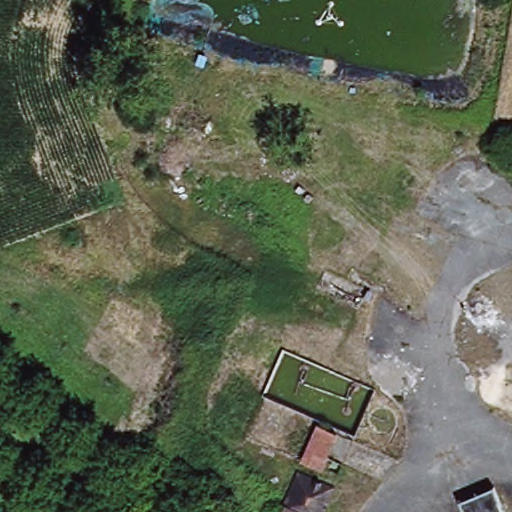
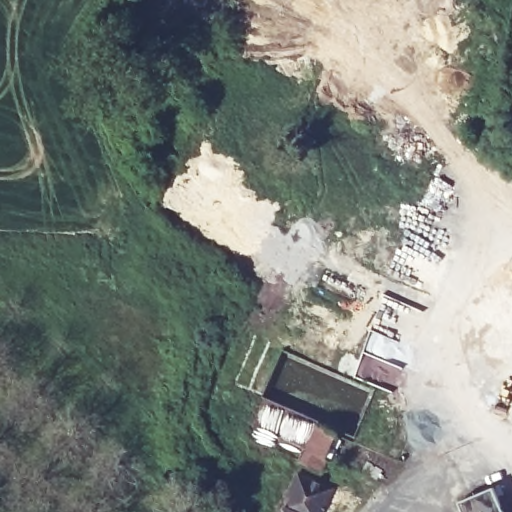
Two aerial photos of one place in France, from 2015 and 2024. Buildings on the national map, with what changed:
unchanged [(184,291),(187,275),(212,279),(209,295),(184,291)]
unchanged [(325,468),(305,460),(315,435),(335,442),(325,468)]
unchanged [(284,512),(298,479),(329,492),(321,512),(284,512)]
unchanged [(490,488),(499,512),(462,512),(458,499),(490,488)]

